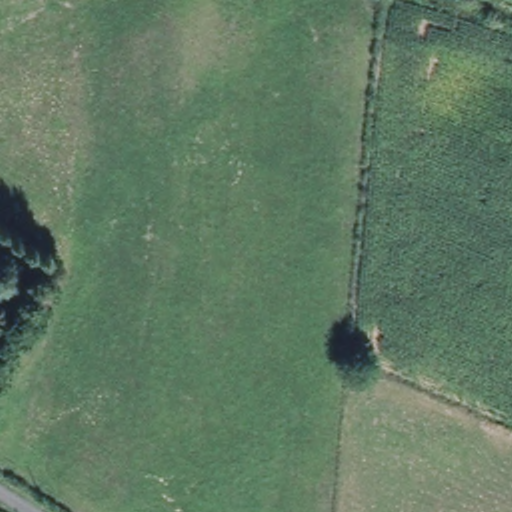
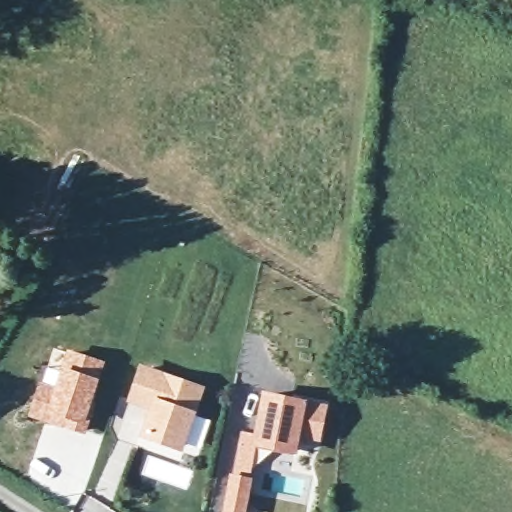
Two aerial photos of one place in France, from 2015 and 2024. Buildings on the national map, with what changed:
new [(36,413),(44,386),(61,391),(73,353),(104,363),(91,402),(96,403),(87,430),(71,424),(59,420),(36,413)]
new [(209,449),(185,441),(184,445),(148,433),(157,407),(135,399),(145,368),(204,388),(195,413),(219,422),(209,449)]
new [(244,433),(259,437),(268,395),(327,407),(320,438),(300,434),(297,450),(258,443),(251,480),(245,512),(228,512),(235,477),(244,433)]

